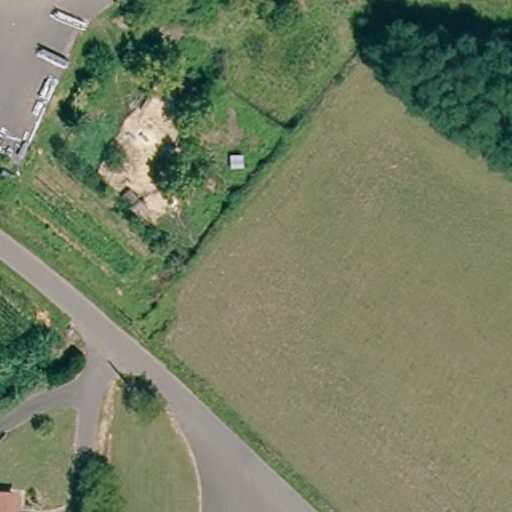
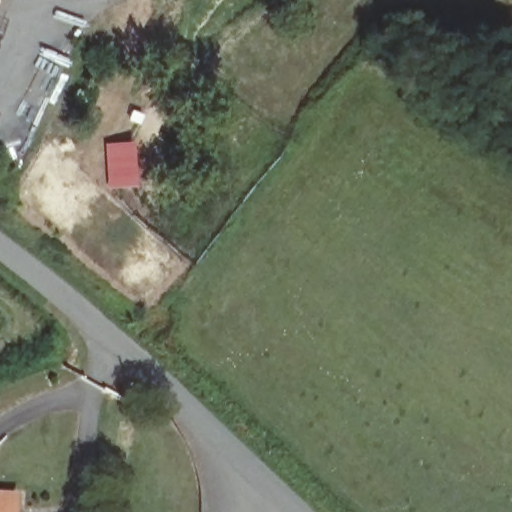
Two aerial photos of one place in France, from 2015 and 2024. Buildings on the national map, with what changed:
new [(138,187),(108,190),(104,145),(133,141),(138,187)]
unchanged [(0,488),(10,489),(9,509),(9,512),(0,512),(0,488)]

